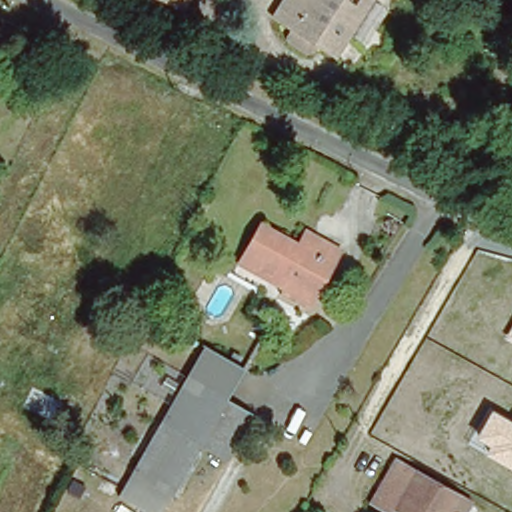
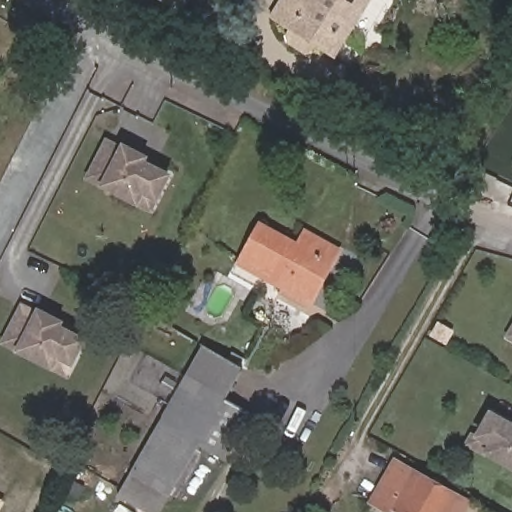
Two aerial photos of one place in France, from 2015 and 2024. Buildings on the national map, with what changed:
new [(157,0),(189,0),(182,14),(157,0)]
unchanged [(294,29),(274,16),(285,0),(369,0),(337,55),(313,40),(305,51),(287,40),(294,29)]
new [(121,142),(149,156),(147,160),(172,174),(158,200),(150,212),(136,206),(99,187),(84,179),(105,139),(121,142)]
unchanged [(313,300),(283,284),(282,285),(240,263),(262,223),(300,244),(307,231),(341,250),(313,300)]
new [(38,307),(65,321),(63,325),(88,338),(73,366),(65,377),(53,370),(15,351),(0,342),(21,302),(38,307)]
unchanged [(504,340),(512,327),(512,344),(504,340)]
unchanged [(121,495),(133,476),(205,350),(242,371),(225,402),(254,418),(227,463),(199,447),(171,498),(164,512),(152,512),(121,495)]
unchanged [(484,454),(489,444),(475,436),(489,410),(512,421),(512,470),(484,454)]
unchanged [(443,512),(387,512),(387,511),(369,501),(393,460),(454,494),(443,512)]
new [(0,510),(0,499),(5,501),(0,510)]

